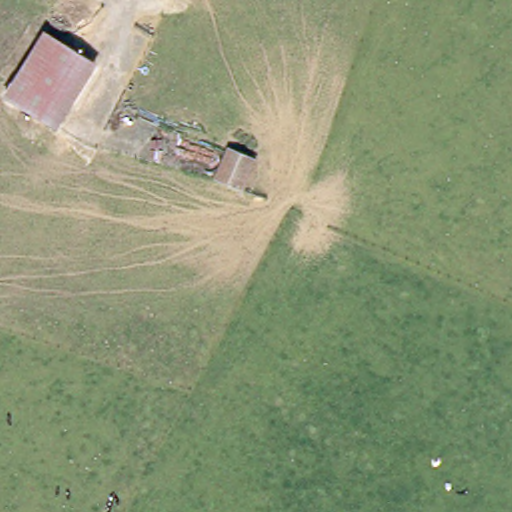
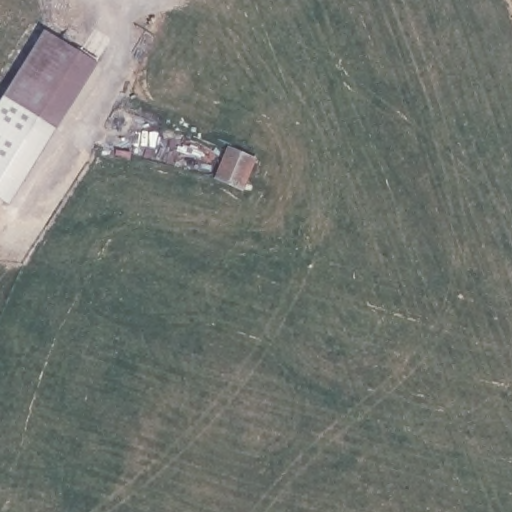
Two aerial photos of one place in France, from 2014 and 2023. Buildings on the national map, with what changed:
unchanged [(10,95),(48,31),(82,51),(43,116),(10,95)]
unchanged [(98,61),(60,126),(43,116),(82,51),(98,61)]
new [(43,116),(60,126),(9,206),(0,201),(0,111),(10,95),(43,116)]
new [(257,159),(243,192),(213,178),(226,147),(257,159)]

